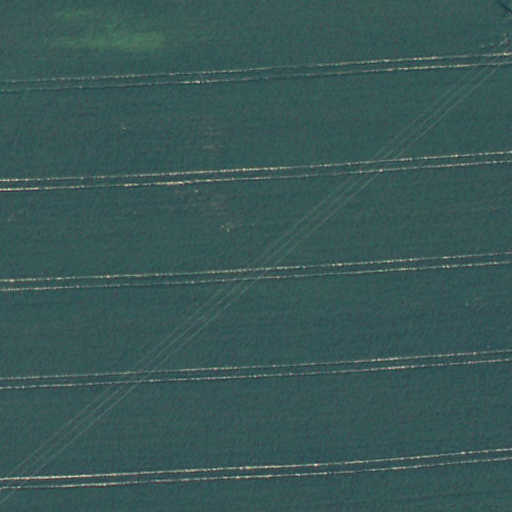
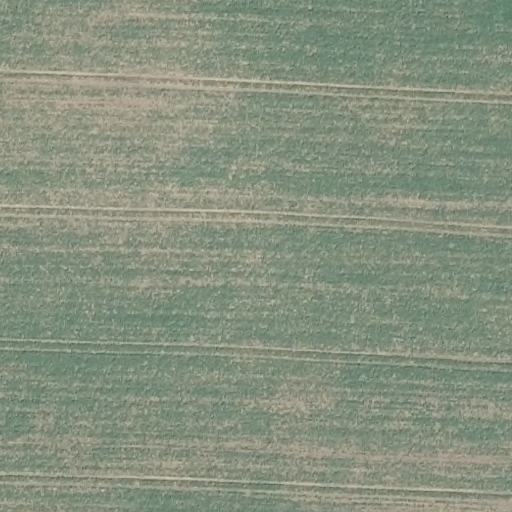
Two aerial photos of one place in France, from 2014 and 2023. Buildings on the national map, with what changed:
[]

